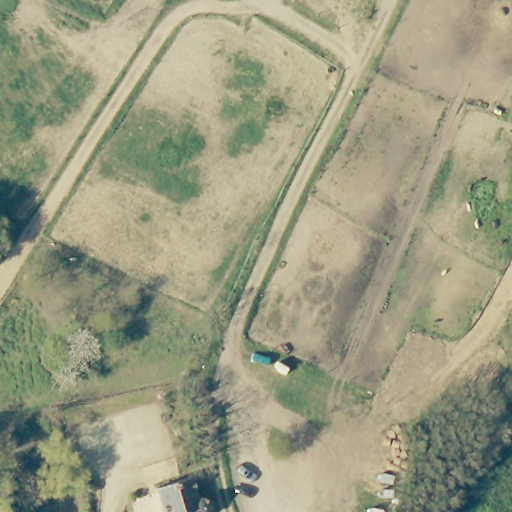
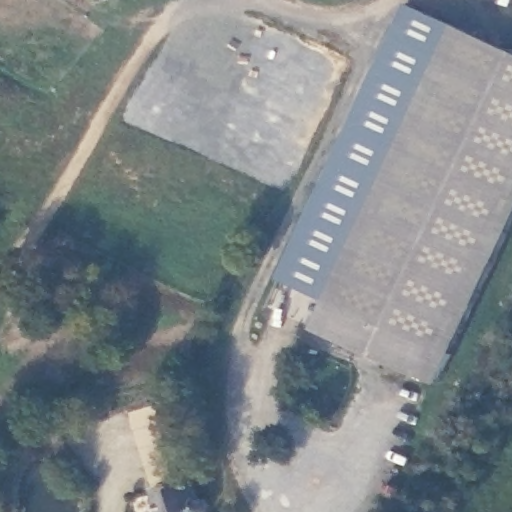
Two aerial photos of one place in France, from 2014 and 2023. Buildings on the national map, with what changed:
new [(313,328),(326,300),(277,280),(402,1),(512,50),(512,218),(437,385),(313,328)]
unchanged [(156,512),(151,492),(151,491),(184,482),(187,481),(190,490),(192,505),(207,500),(210,512),(157,512),(156,512)]

